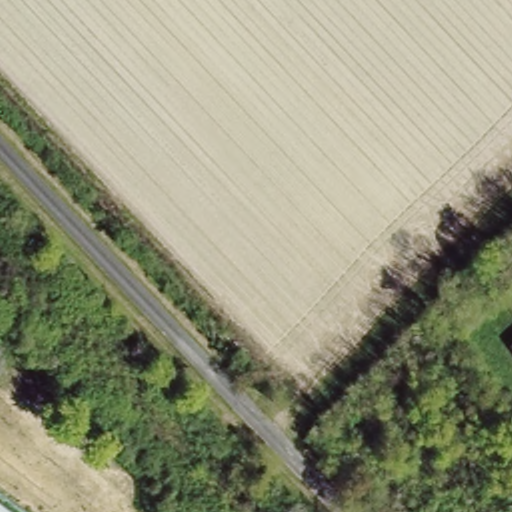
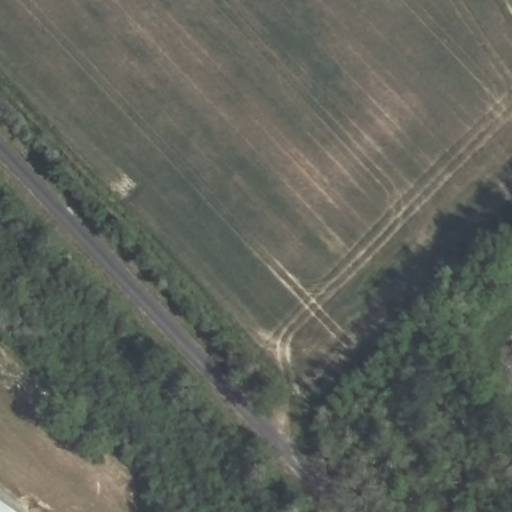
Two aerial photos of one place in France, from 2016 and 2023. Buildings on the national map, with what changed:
unchanged [(18,512),(0,512),(0,499),(18,512)]

